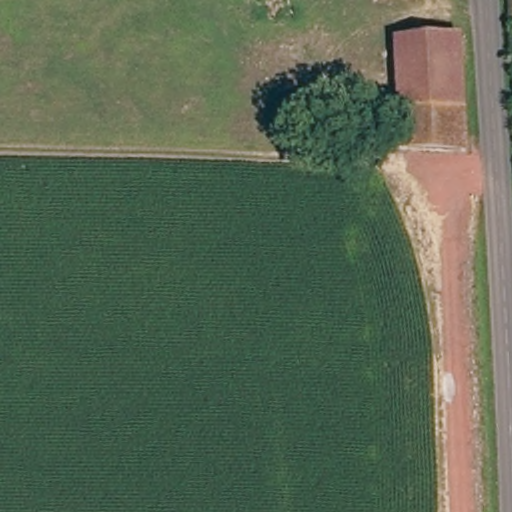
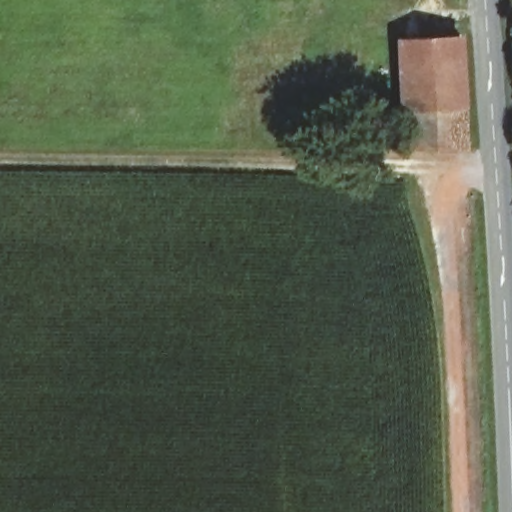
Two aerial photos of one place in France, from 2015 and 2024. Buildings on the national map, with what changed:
unchanged [(394,0),(410,0),(410,2),(394,0)]
unchanged [(400,106),(401,85),(402,39),(464,42),(460,110),(400,106)]
unchanged [(366,142),(372,83),(401,85),(400,106),(399,144),(366,142)]
unchanged [(399,144),(400,106),(460,110),(458,152),(399,144)]

